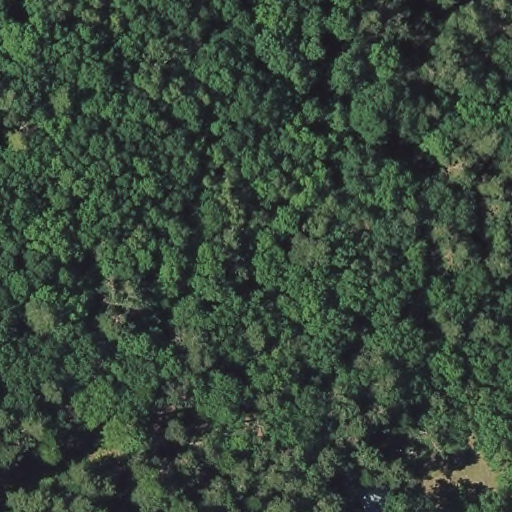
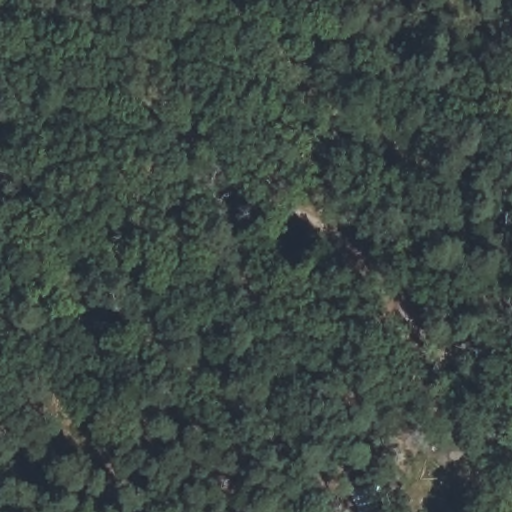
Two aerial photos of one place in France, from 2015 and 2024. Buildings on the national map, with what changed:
unchanged [(358,512),(343,488),(382,473),(393,499),(367,512),(358,512)]

